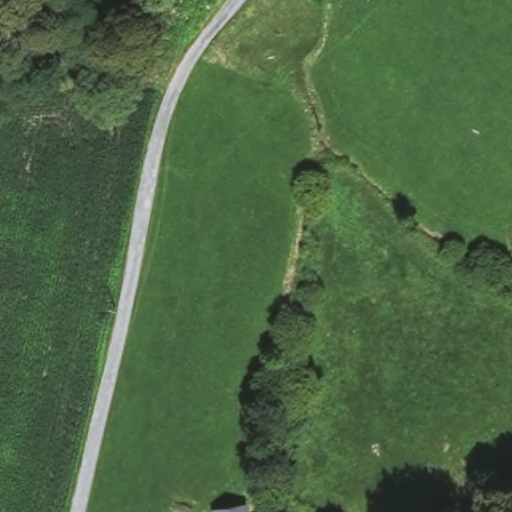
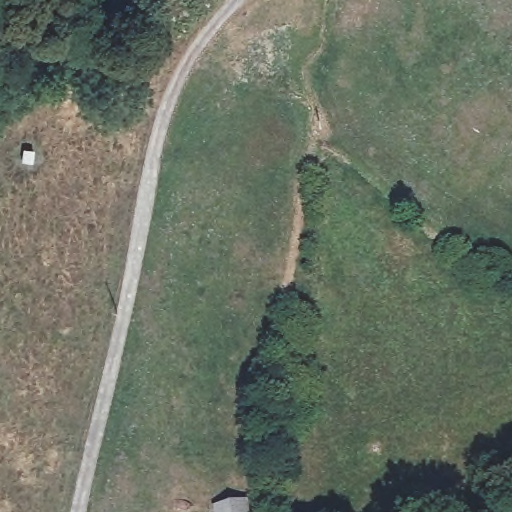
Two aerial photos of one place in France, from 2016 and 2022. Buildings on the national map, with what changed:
unchanged [(249,512),(208,512),(207,504),(247,499),(249,512)]

